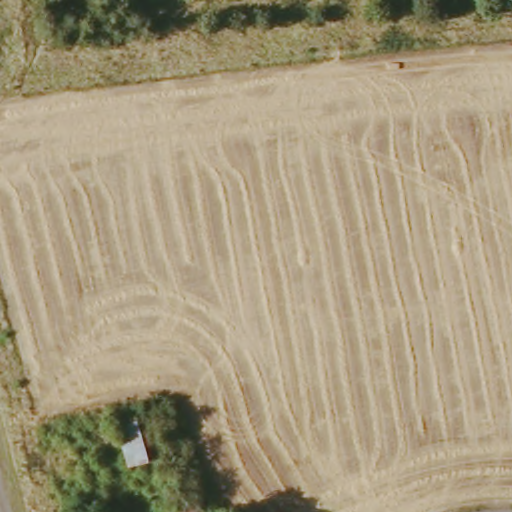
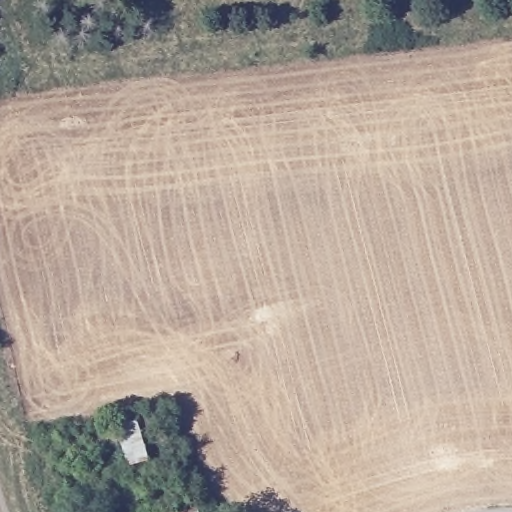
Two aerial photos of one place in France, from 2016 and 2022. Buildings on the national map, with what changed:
unchanged [(118,421),(146,412),(160,461),(132,467),(118,421)]
unchanged [(203,503),(207,512),(168,512),(203,503)]

